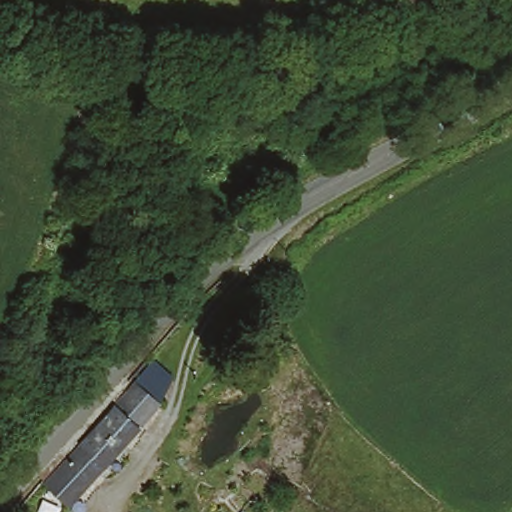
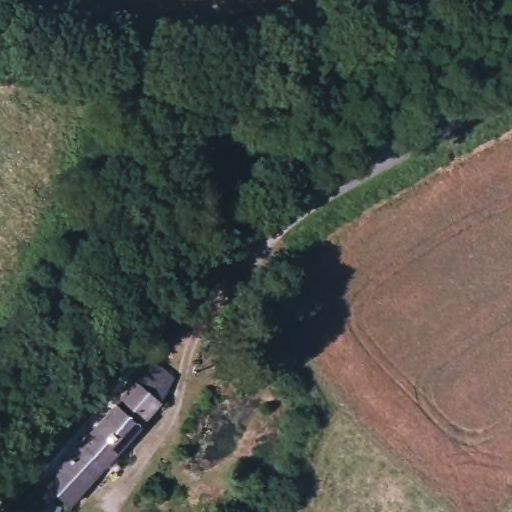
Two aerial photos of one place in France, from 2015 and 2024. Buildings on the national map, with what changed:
unchanged [(155,359),(147,351),(162,336),(170,344),(155,359)]
unchanged [(118,448),(114,453),(110,458),(105,464),(100,470),(95,475),(66,508),(43,486),(135,381),(158,402),(123,443),(118,448)]

